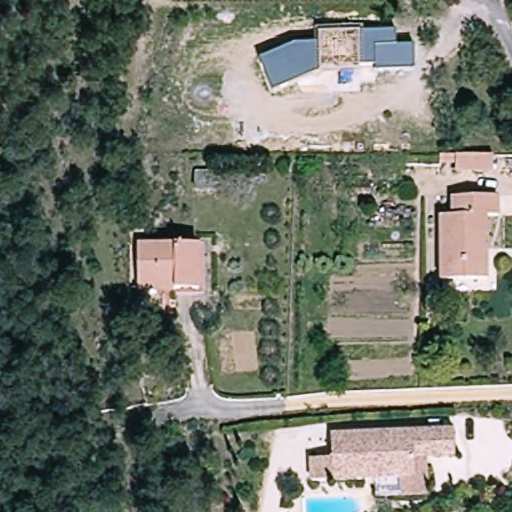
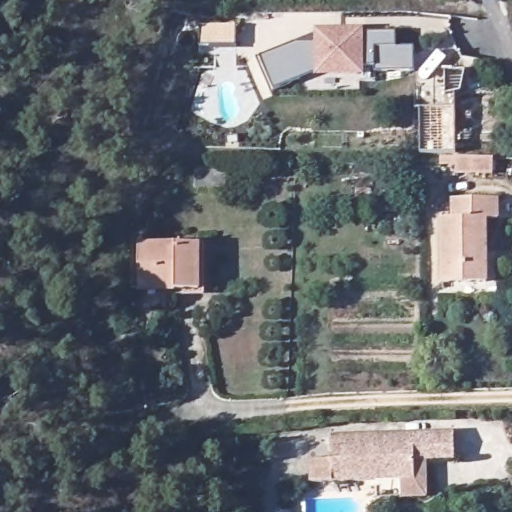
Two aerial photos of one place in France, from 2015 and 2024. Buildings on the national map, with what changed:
unchanged [(395,47),(412,46),(412,70),(375,71),(376,66),(359,66),(359,71),(319,71),(276,90),(260,57),(294,43),(317,45),(317,31),(395,31),(395,47)]
new [(415,109),(414,74),(465,71),(461,92),(455,95),(456,154),(421,155),(418,109),(415,109)]
unchanged [(478,155),(494,155),(493,170),(457,170),(457,155),(478,155)]
unchanged [(460,220),(460,198),(503,197),(504,222),(490,222),(493,283),(450,285),(448,221),(460,220)]
unchanged [(146,291),(146,283),(144,244),(205,242),(207,291),(181,292),(146,294),(146,291)]
unchanged [(372,495),(371,478),(308,480),(308,458),(328,457),(327,434),(449,428),(451,455),(420,456),(421,476),(422,492),(372,495)]

